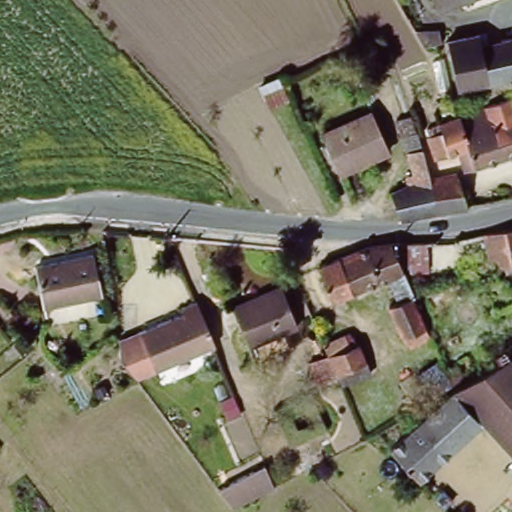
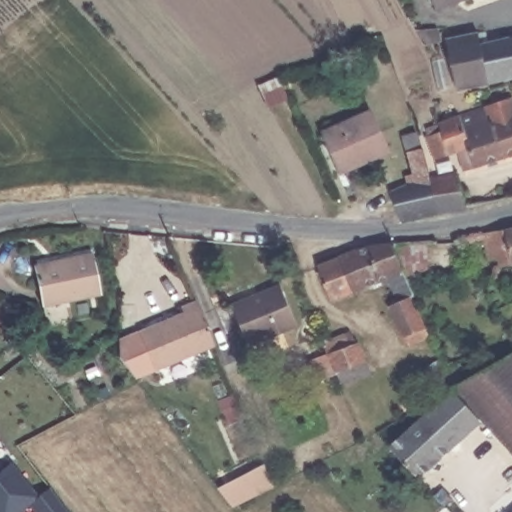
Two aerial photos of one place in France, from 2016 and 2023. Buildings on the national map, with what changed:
unchanged [(429,0),(461,0),(434,11),(429,0)]
unchanged [(441,36),(445,51),(444,51),(439,51),(435,53),(425,55),(422,49),(417,41),(441,36)]
unchanged [(457,95),(449,49),(487,41),(488,49),(512,46),(512,84),(457,95)]
unchanged [(466,175),(459,161),(439,166),(429,144),(444,138),(441,133),(467,120),(461,104),(461,103),(474,100),(480,98),(485,96),(491,112),(512,105),(512,162),(466,175)]
unchanged [(386,148),(335,172),(317,134),(367,110),(386,148)]
unchanged [(406,225),(405,225),(397,227),(387,198),(411,186),(392,136),(410,130),(412,137),(413,140),(415,148),(417,155),(424,173),(424,176),(427,183),(427,184),(429,191),(435,208),(435,211),(438,219),(406,225)]
unchanged [(435,211),(435,208),(429,191),(427,184),(427,183),(454,178),(467,214),(464,215),(462,215),(460,215),(445,218),(442,219),(438,219),(435,211)]
unchanged [(500,270),(495,245),(493,233),(512,229),(512,267),(500,270)]
unchanged [(100,293),(42,304),(35,265),(92,254),(100,293)]
unchanged [(394,258),(400,273),(415,307),(423,327),(429,342),(410,350),(405,340),(400,342),(387,313),(397,309),(387,286),(334,309),(317,273),(358,256),(375,255),(392,254),(394,258)]
unchanged [(283,299),(297,332),(250,351),(234,310),(280,291),(283,299)]
unchanged [(184,317),(182,312),(195,306),(215,351),(135,384),(118,362),(117,345),(184,317)]
unchanged [(357,343),(362,340),(368,359),(372,374),(342,385),(338,373),(312,381),(305,359),(328,352),(322,337),(349,328),(357,343)]
unchanged [(483,427),(460,387),(512,356),(512,461),(483,427)]
unchanged [(483,427),(419,490),(380,449),(449,393),(460,387),(483,427)]
new [(12,463),(37,497),(50,488),(69,512),(36,512),(30,504),(22,510),(20,508),(14,512),(0,512),(0,470),(0,471),(12,463)]
unchanged [(215,491),(257,468),(271,494),(236,512),(231,512),(215,491)]
unchanged [(510,495),(512,494),(512,497),(510,495)]

